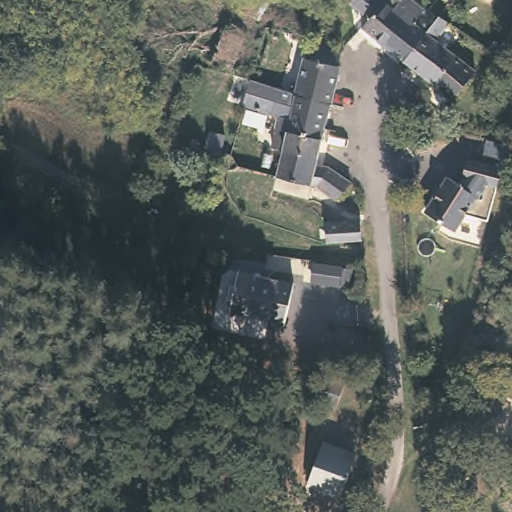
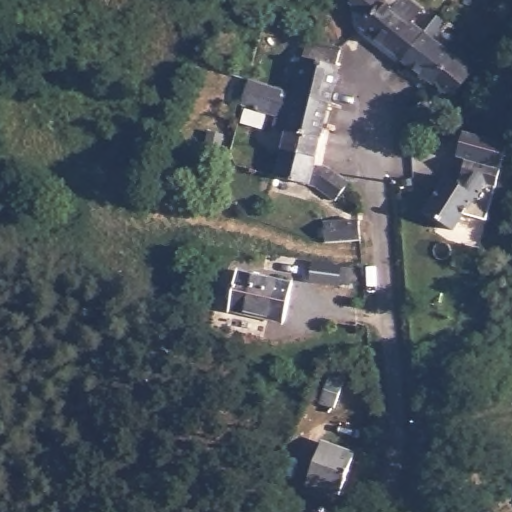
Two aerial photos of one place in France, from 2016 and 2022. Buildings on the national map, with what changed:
unchanged [(270,0),(259,19),(254,17),(231,69),(211,60),(239,0),(270,0)]
unchanged [(336,8),(335,21),(314,14),(315,8),(306,5),(307,0),(328,0),(336,2),(336,8)]
unchanged [(400,15),(377,42),(358,27),(365,17),(346,2),(348,0),(396,0),(389,7),(400,15)]
unchanged [(400,15),(389,7),(396,0),(417,0),(434,14),(398,60),(377,42),(400,15)]
unchanged [(442,20),(429,38),(470,70),(449,99),(432,82),(430,85),(398,60),(434,14),(442,20)]
unchanged [(251,80),(297,91),(309,40),(340,46),(336,65),(339,66),(329,103),(249,85),(251,80)]
unchanged [(512,78),(512,87),(509,86),(512,78)]
unchanged [(243,105),(249,85),(329,103),(323,127),(325,128),(322,137),(287,130),(290,120),(278,116),(243,105)]
unchanged [(267,116),(263,129),(243,123),(247,110),(267,116)]
unchanged [(290,120),(287,130),(322,137),(318,157),(283,149),(272,145),(277,119),(278,116),(290,120)]
unchanged [(318,157),(316,165),(327,165),(351,181),(335,200),(312,184),(277,174),(283,149),(318,157)]
unchanged [(503,170),(492,210),(488,222),(465,216),(454,232),(426,214),(449,179),(459,185),(463,180),(468,160),(503,170)]
unchanged [(361,240),(326,242),(325,222),(359,220),(361,240)]
unchanged [(349,284),(305,277),(307,267),(351,273),(349,284)]
unchanged [(293,282),(285,320),(269,316),(268,320),(245,315),(246,311),(231,307),(239,271),(293,282)]
unchanged [(345,380),(336,405),(322,401),(331,375),(345,380)]
unchanged [(351,452),(336,493),(303,481),(318,440),(351,452)]

